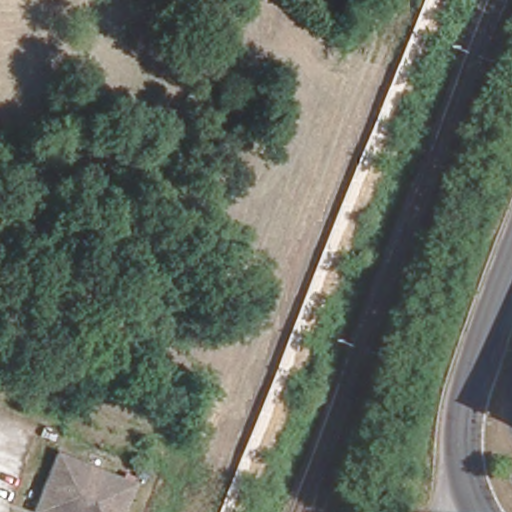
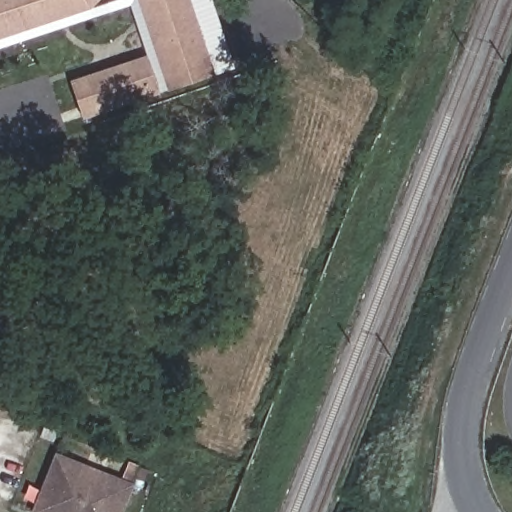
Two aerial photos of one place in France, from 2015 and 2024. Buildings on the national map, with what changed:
new [(93,0),(86,7),(0,38),(0,0),(93,0)]
new [(168,86),(141,0),(192,0),(214,70),(168,86)]
new [(214,70),(192,0),(213,0),(234,64),(214,70)]
new [(146,52),(159,89),(83,116),(70,78),(146,52)]
unchanged [(131,512),(41,512),(65,456),(141,490),(131,512)]

